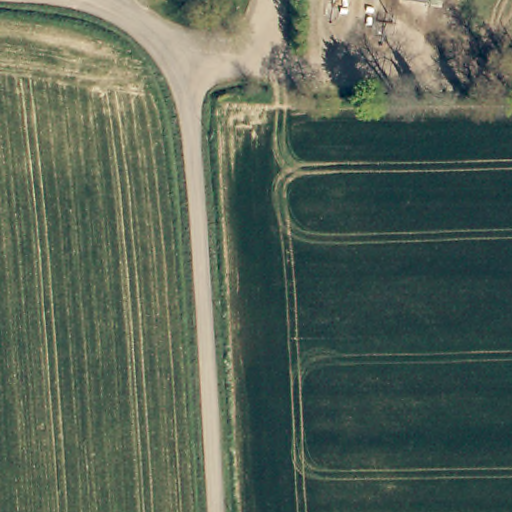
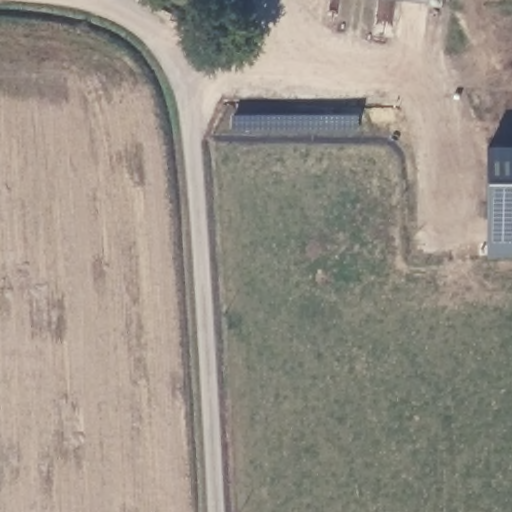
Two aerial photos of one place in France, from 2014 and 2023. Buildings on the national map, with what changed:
new [(512,255),(485,255),(485,147),(512,147),(512,255)]

